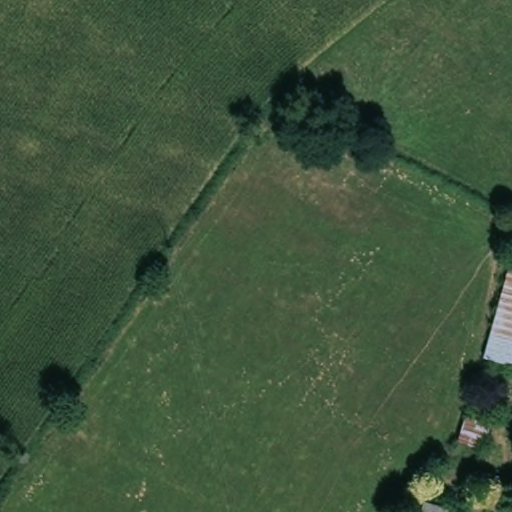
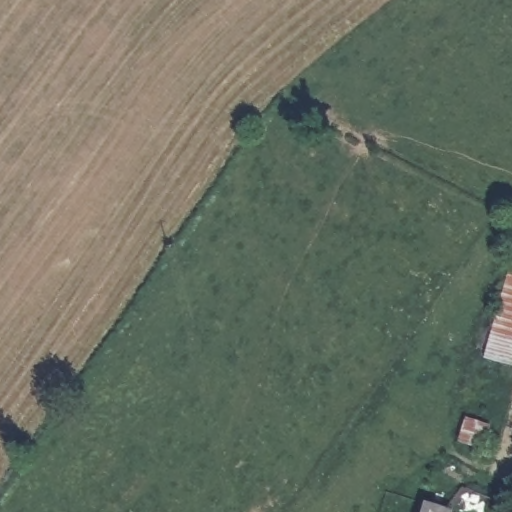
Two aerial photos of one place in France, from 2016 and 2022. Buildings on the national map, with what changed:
unchanged [(487,344),(512,263),(512,351),(512,353),(487,344)]
unchanged [(491,422),(483,445),(458,436),(466,414),(491,422)]
unchanged [(425,503),(439,508),(445,510),(444,512),(422,512),(425,503)]

